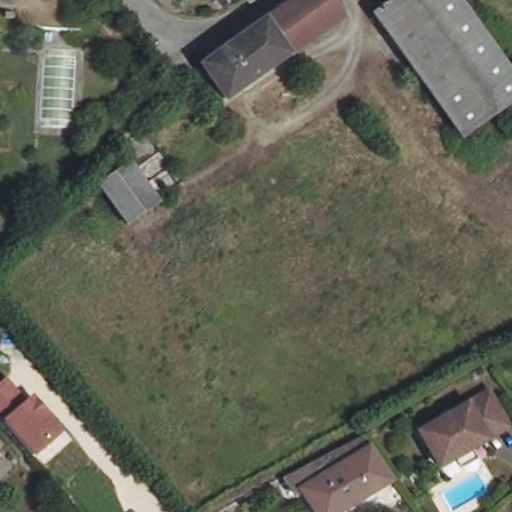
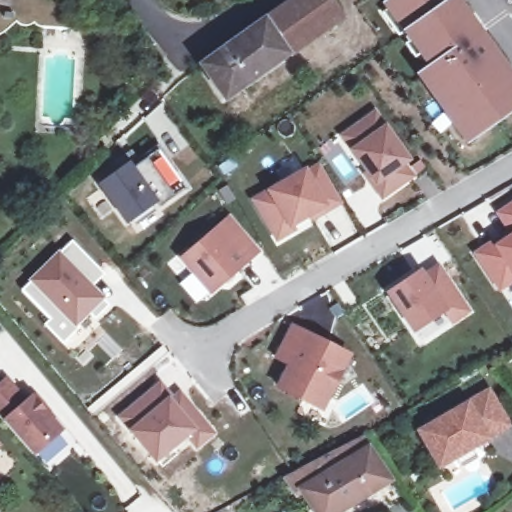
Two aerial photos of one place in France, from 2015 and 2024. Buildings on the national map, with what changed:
unchanged [(77,6),(76,30),(53,27),(51,26),(48,25),(46,23),(44,22),(37,26),(28,21),(0,37),(0,0),(57,0),(61,5),(77,6)]
unchanged [(206,66),(297,0),(333,0),(346,16),(229,100),(206,66)]
unchanged [(468,0),(512,60),(512,103),(473,131),(386,10),(388,9),(399,0),(468,0)]
new [(383,201),(364,175),(368,172),(351,150),(341,136),(376,111),(386,125),(411,160),(405,165),(415,177),(383,201)]
unchanged [(129,165),(155,201),(127,224),(99,186),(129,165)]
new [(311,216),(294,225),(298,231),(277,244),(251,200),(268,191),(306,169),(308,171),(320,165),(344,204),(314,221),(311,216)]
new [(474,252),(492,241),(496,246),(510,236),(497,213),(512,203),(512,283),(499,291),(474,252)]
new [(211,296),(179,260),(230,215),(261,252),(211,296)]
new [(45,325),(52,319),(23,290),(30,283),(29,281),(59,252),(60,254),(73,242),(104,274),(93,286),(105,298),(103,301),(109,306),(96,318),(91,314),(76,330),(64,343),(45,325)]
new [(444,312),(412,332),(386,292),(421,269),(424,274),(439,263),(472,312),(453,325),(444,312)]
new [(276,388),(288,365),(274,358),(292,325),(353,355),(324,411),(276,388)]
new [(5,381),(24,404),(30,399),(59,432),(30,456),(0,420),(0,385),(5,381)]
new [(161,382),(174,396),(181,392),(216,435),(197,450),(187,438),(156,464),(129,431),(119,417),(161,382)]
unchanged [(493,395),(504,413),(512,427),(512,430),(492,442),(444,470),(424,435),(493,395)]
unchanged [(289,482),(298,476),(298,475),(363,434),(393,480),(342,512),(321,512),(309,494),(300,500),(289,482)]

